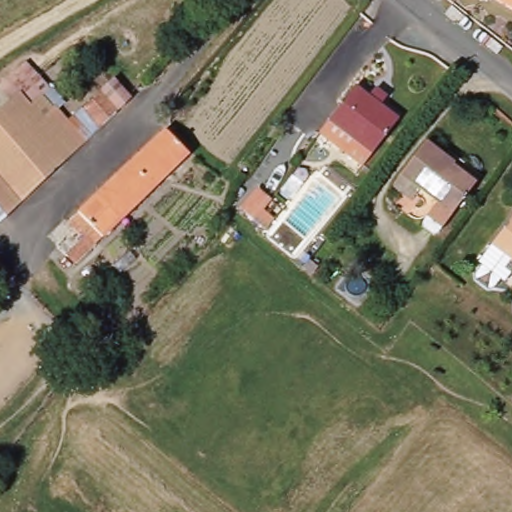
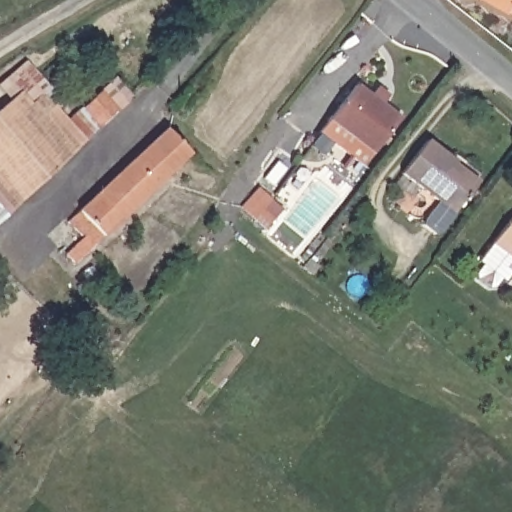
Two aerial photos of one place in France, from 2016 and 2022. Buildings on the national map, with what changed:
unchanged [(510,9),(495,0),(512,0),(512,10),(510,9)]
unchanged [(76,120),(91,108),(108,94),(118,108),(104,124),(91,135),(20,198),(12,204),(0,192),(0,107),(7,101),(0,93),(0,85),(22,66),(46,92),(59,107),(63,105),(76,120)]
unchanged [(354,83),(393,114),(357,158),(321,128),(354,83)]
unchanged [(189,158),(109,229),(103,224),(92,234),(72,212),(163,130),(189,158)]
unchanged [(455,164),(453,167),(475,186),(435,238),(425,230),(441,208),(402,175),(429,143),(455,164)]
unchanged [(271,202),(263,212),(273,220),(265,229),(241,209),(257,189),(271,202)]
unchanged [(0,217),(0,192),(12,204),(0,217)]
unchanged [(512,222),(512,250),(498,239),(512,222)]

